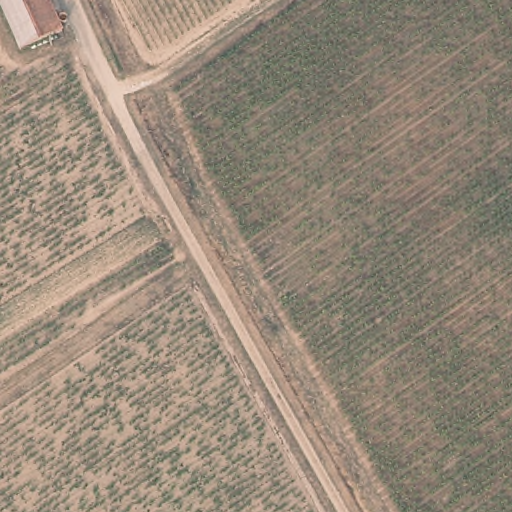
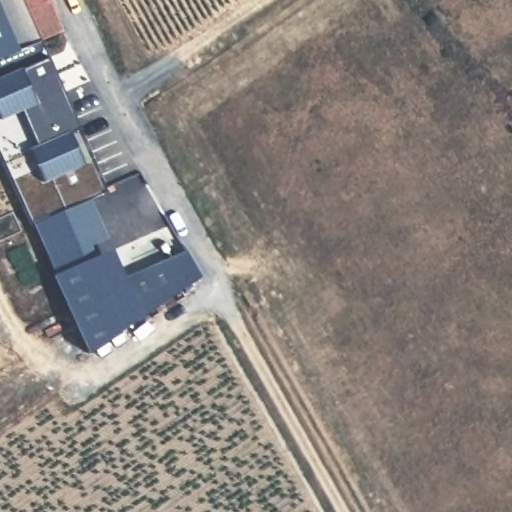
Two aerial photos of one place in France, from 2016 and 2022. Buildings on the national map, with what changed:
new [(141,317),(88,353),(52,276),(55,274),(31,223),(0,156),(0,0),(4,0),(24,46),(40,39),(47,58),(79,129),(106,190),(90,199),(107,240),(92,246),(96,256),(111,249),(124,276),(186,250),(200,278),(141,317)]
unchanged [(4,0),(53,0),(66,28),(24,46),(4,0)]

